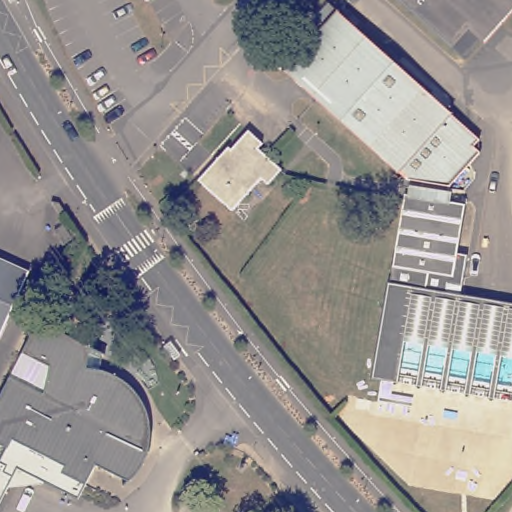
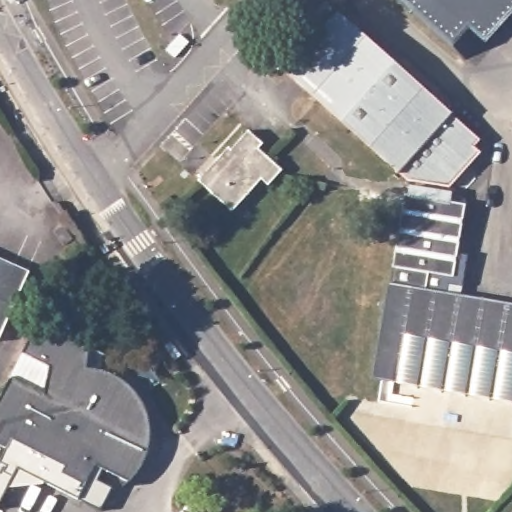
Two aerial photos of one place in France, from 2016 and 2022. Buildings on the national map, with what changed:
unchanged [(464,53),(405,0),(512,0),(464,53)]
unchanged [(482,139),(477,146),(484,153),(453,187),(409,181),(275,61),(330,1),(482,139)]
unchanged [(197,180),(227,147),(230,150),(248,130),(262,144),(257,149),(281,170),(267,185),(261,178),(231,211),(197,180)]
unchanged [(457,277),(432,274),(431,289),(512,303),(512,402),(376,379),(392,283),(417,287),(420,271),(396,268),(408,194),(426,197),(428,190),(452,194),(451,201),(469,204),(457,277)]
unchanged [(0,340),(0,258),(31,272),(0,340)]
unchanged [(0,395),(10,375),(46,393),(49,365),(22,352),(41,318),(94,341),(90,366),(116,375),(137,391),(148,412),(151,433),(145,458),(136,473),(127,482),(94,466),(84,484),(7,444),(0,455),(0,395)]

